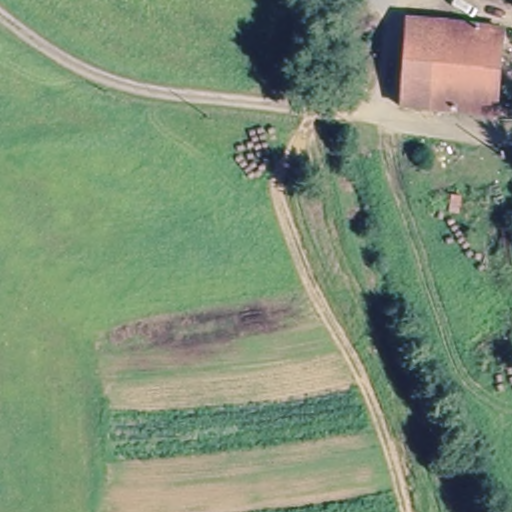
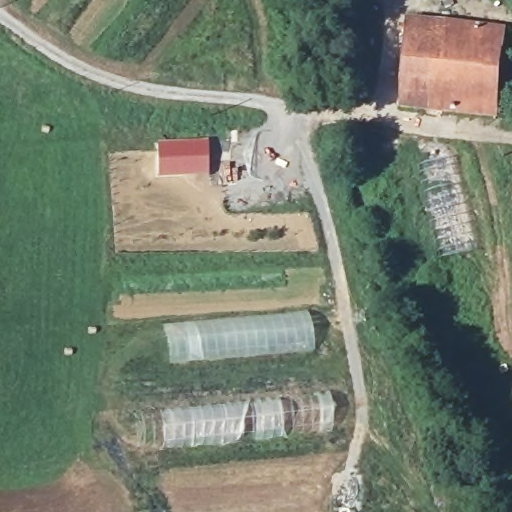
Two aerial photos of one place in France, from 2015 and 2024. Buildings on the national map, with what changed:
unchanged [(505,31),(495,121),(400,109),(411,21),(505,31)]
new [(207,138),(209,174),(155,176),(155,140),(207,138)]
new [(210,321),(307,310),(314,351),(169,365),(162,324),(210,321)]
new [(207,405),(277,396),(328,392),(332,430),(295,435),(260,437),(210,444),(162,444),(160,409),(207,405)]

